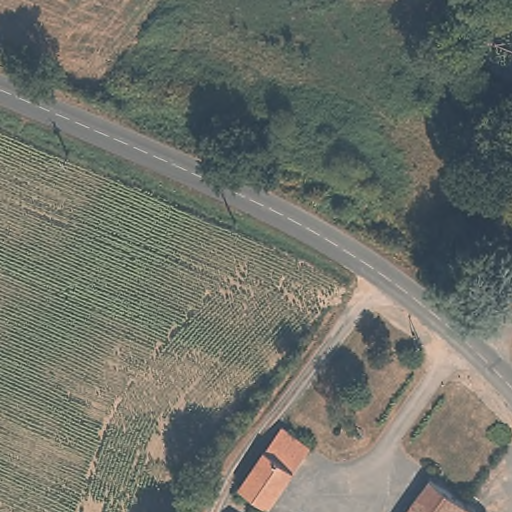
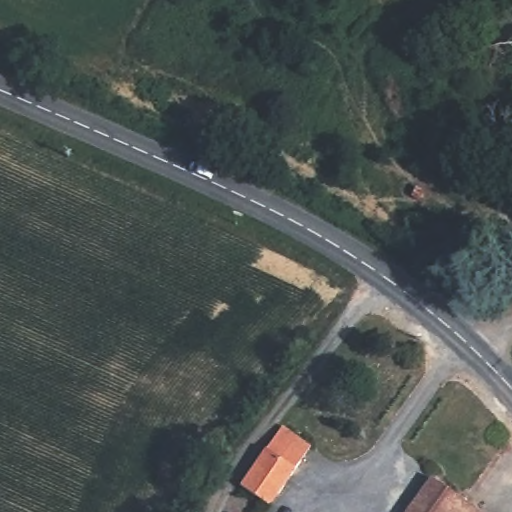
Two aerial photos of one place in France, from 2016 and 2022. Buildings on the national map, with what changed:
unchanged [(273,446),(289,428),(316,449),(298,470),(282,487),(264,509),(237,486),(257,464),(273,446)]
unchanged [(463,499),(454,512),(410,512),(436,480),(463,499)]
unchanged [(479,512),(454,512),(463,499),(479,512)]
unchanged [(241,512),(228,512),(234,505),(241,512)]
unchanged [(251,512),(249,512),(250,511),(251,512)]

